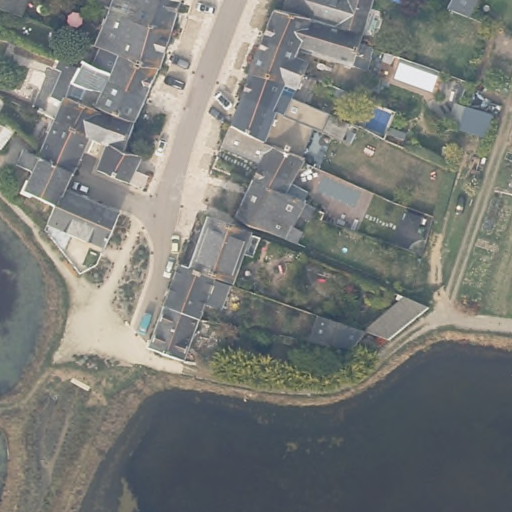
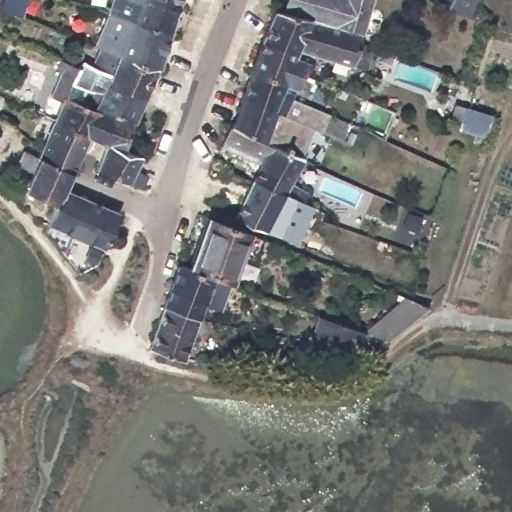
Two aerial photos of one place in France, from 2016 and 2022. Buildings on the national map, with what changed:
unchanged [(151,0),(177,9),(168,38),(113,21),(106,19),(114,0),(151,0)]
unchanged [(151,0),(180,0),(177,9),(151,0)]
unchanged [(272,10),(273,10),(276,0),(372,0),(367,13),(359,35),(282,14),(272,10)]
unchanged [(453,0),(473,0),(466,14),(450,7),(453,0)]
unchanged [(282,14),(359,35),(356,43),(371,48),(364,70),(295,50),(260,40),(272,10),(282,14)]
unchanged [(107,81),(90,74),(98,53),(93,51),(106,19),(113,21),(168,38),(159,67),(156,73),(144,100),(105,86),(107,81)]
unchanged [(65,40),(63,47),(55,44),(58,38),(65,40)]
unchanged [(295,50),(292,60),(304,64),(301,74),(296,87),(293,86),(248,75),(247,75),(260,40),(295,50)]
unchanged [(67,64),(70,54),(73,44),(89,49),(88,61),(84,72),(67,64)]
unchanged [(396,55),(393,63),(384,59),(386,51),(396,55)]
unchanged [(146,180),(140,194),(95,175),(105,151),(101,149),(88,143),(52,124),(60,106),(50,100),(60,76),(55,74),(59,65),(76,73),(83,76),(94,81),(89,98),(85,111),(92,115),(110,121),(130,128),(120,155),(139,161),(133,175),(146,180)]
unchanged [(293,86),(290,97),(287,110),(284,109),(242,99),(246,84),(248,75),(293,86)]
unchanged [(140,110),(133,127),(93,113),(97,102),(105,86),(144,100),(140,110)]
unchanged [(490,112),(486,131),(461,125),(467,106),(490,112)]
unchanged [(52,124),(88,143),(71,179),(36,160),(40,150),(52,124)]
unchanged [(0,151),(0,126),(12,135),(0,151)]
unchanged [(253,169),(233,161),(215,152),(223,129),(297,164),(286,186),(296,193),(290,204),(245,187),(253,169)]
unchanged [(55,212),(52,211),(23,198),(33,176),(14,167),(26,142),(40,150),(36,160),(71,179),(63,196),(55,212)]
unchanged [(290,204),(308,211),(301,223),(290,219),(284,233),(292,237),(287,247),(228,224),(245,187),(290,204)]
unchanged [(115,219),(101,252),(44,228),(52,211),(55,212),(63,196),(115,219)]
unchanged [(211,281),(209,286),(186,276),(199,226),(254,241),(249,262),(238,259),(230,287),(226,285),(211,281)]
unchanged [(141,350),(150,329),(158,311),(175,272),(186,276),(209,286),(211,281),(226,285),(214,314),(199,309),(193,325),(185,342),(177,364),(141,350)]
unchanged [(396,301),(421,310),(383,343),(359,334),(396,301)]
unchanged [(342,356),(303,348),(314,317),(359,334),(342,356)]

